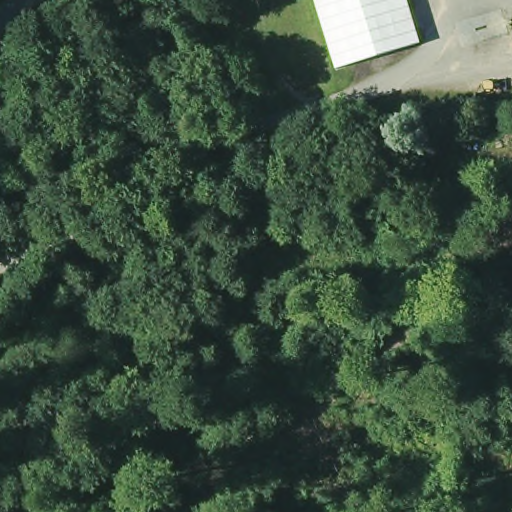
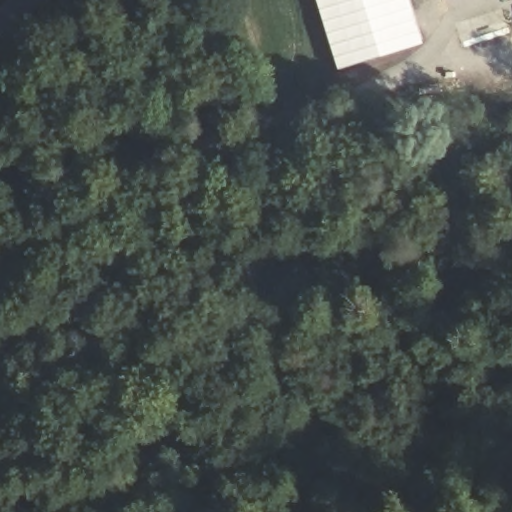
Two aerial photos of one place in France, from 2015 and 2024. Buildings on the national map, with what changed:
unchanged [(340,74),(316,0),(408,0),(423,47),(340,74)]

